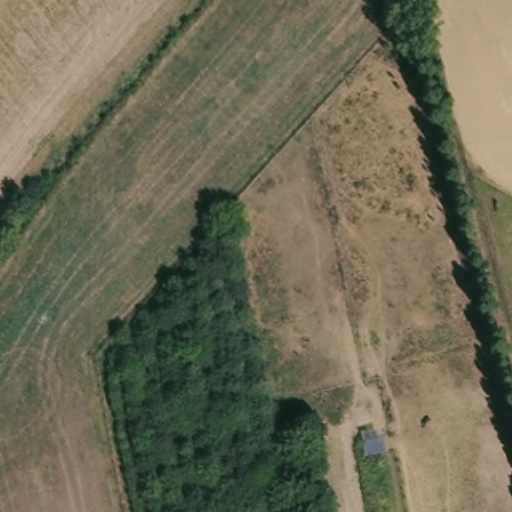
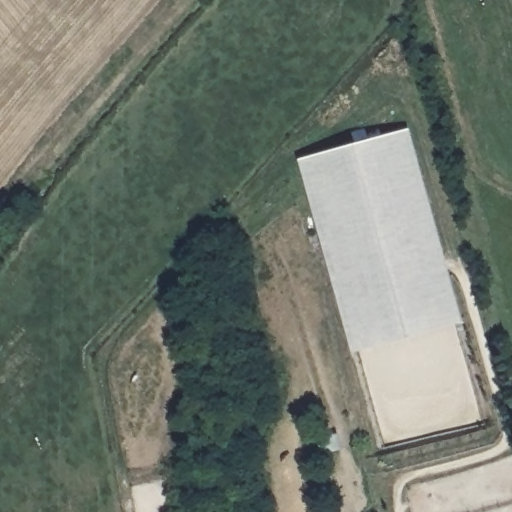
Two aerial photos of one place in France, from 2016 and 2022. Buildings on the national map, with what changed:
new [(462,323),(352,354),(298,160),(409,130),(462,323)]

